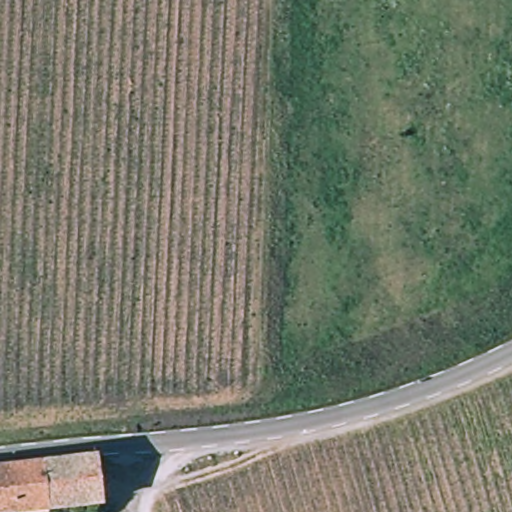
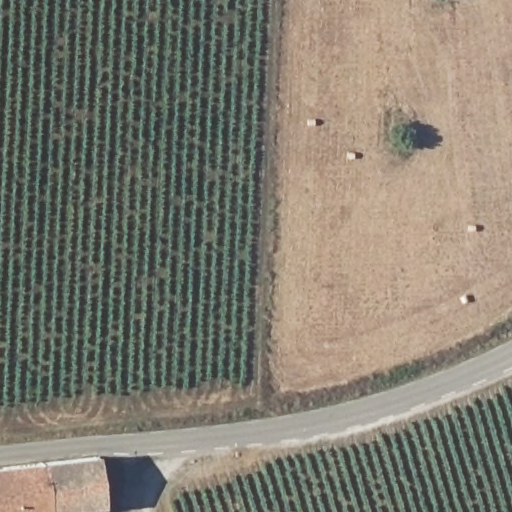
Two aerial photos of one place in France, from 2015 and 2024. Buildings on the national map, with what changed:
unchanged [(100,509),(75,512),(0,512),(0,472),(95,461),(100,509)]

